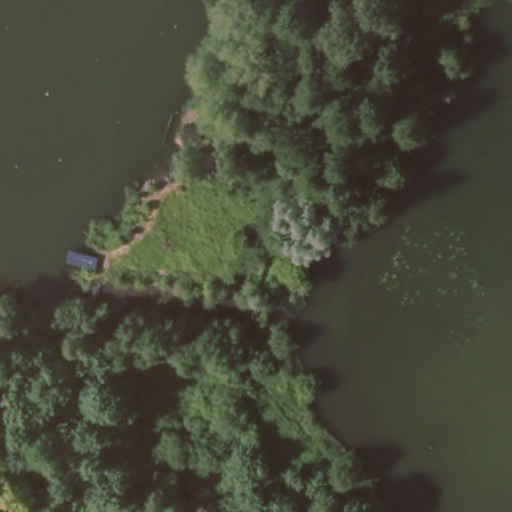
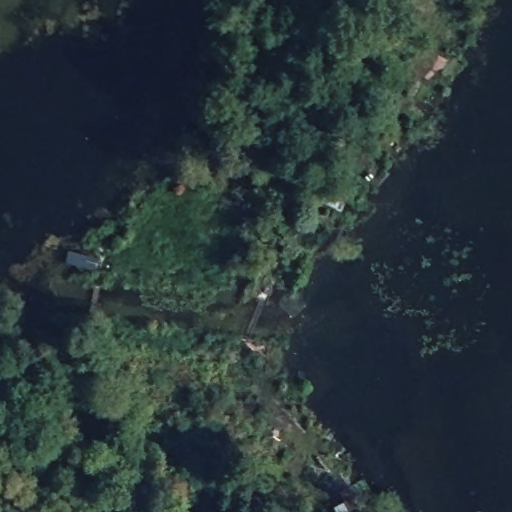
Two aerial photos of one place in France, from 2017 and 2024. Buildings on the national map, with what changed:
unchanged [(199,164),(183,151),(191,142),(206,155),(199,164)]

